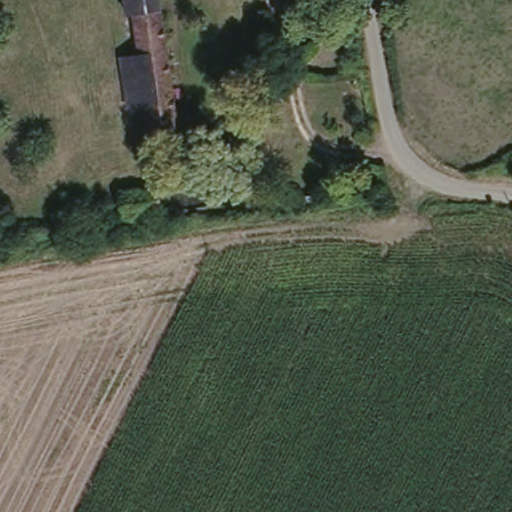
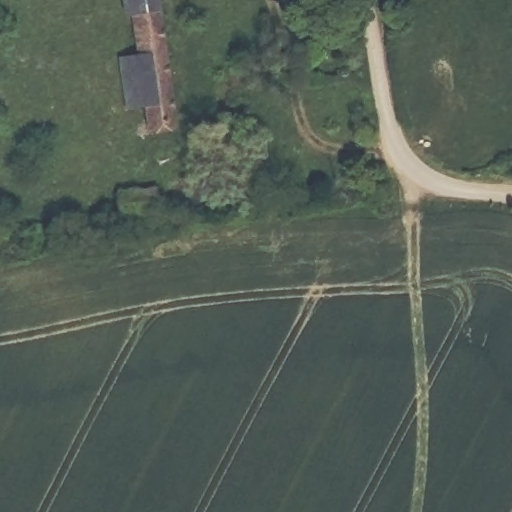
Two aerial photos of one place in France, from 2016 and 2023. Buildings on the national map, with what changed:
unchanged [(150,100),(128,104),(121,56),(142,54),(134,5),(108,7),(107,0),(160,0),(181,125),(156,130),(150,100)]
unchanged [(164,187),(169,210),(132,217),(127,195),(164,187)]

